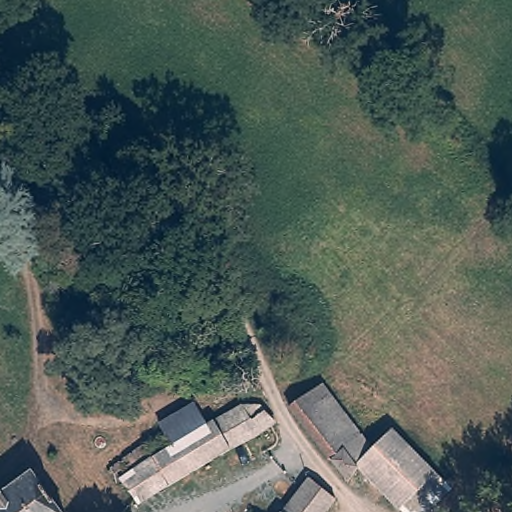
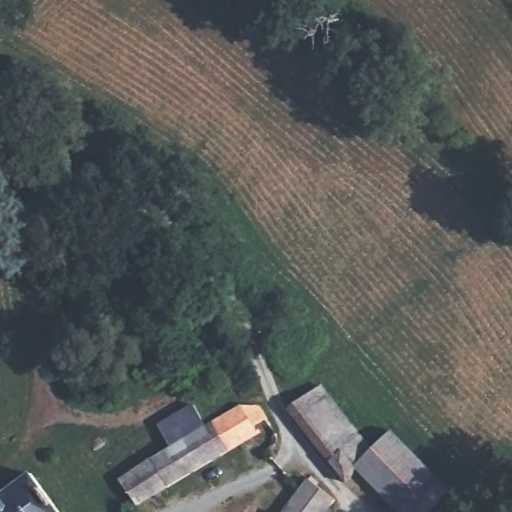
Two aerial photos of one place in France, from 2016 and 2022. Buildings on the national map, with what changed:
unchanged [(371,444),(374,447),(374,448),(380,444),(390,432),(395,431),(452,490),(429,512),(402,512),(400,510),(358,468),(347,483),(289,408),(306,395),(320,386),(331,401),(368,441),(371,444)]
unchanged [(160,424),(194,403),(207,426),(173,446),(160,424)]
unchanged [(121,478),(120,478),(111,466),(142,444),(157,434),(167,449),(173,446),(207,426),(214,422),(237,405),(260,407),(262,409),(267,416),(274,422),(275,424),(262,434),(257,438),(254,440),(250,442),(231,452),(169,488),(138,505),(121,478)]
unchanged [(5,493),(6,493),(32,474),(60,512),(0,512),(0,497),(5,493)]
unchanged [(310,479),(335,500),(326,512),(283,512),(310,479)]

